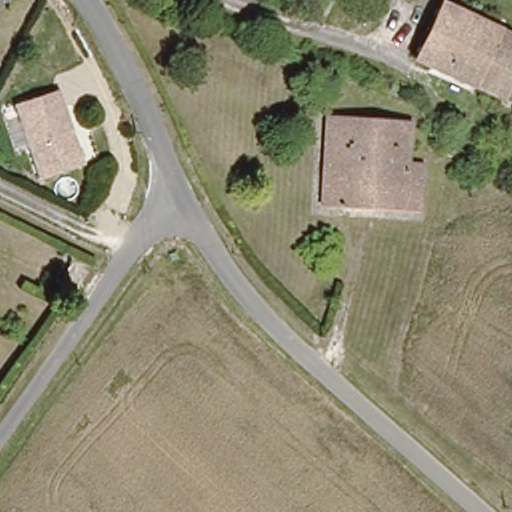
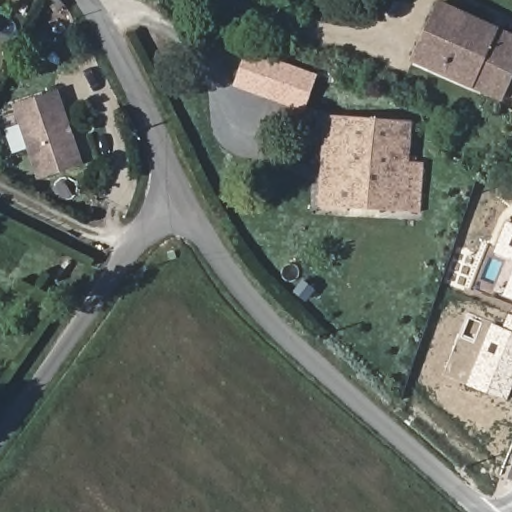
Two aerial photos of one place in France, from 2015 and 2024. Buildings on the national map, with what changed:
unchanged [(512,78),(501,101),(407,57),(436,0),(448,0),(512,35),(512,78)]
new [(246,48),(318,74),(303,111),(233,87),(246,48)]
unchanged [(80,160),(39,176),(12,105),(54,89),(80,160)]
unchanged [(429,225),(414,225),(415,211),(329,205),(321,204),(327,112),(336,113),(411,119),(408,162),(423,163),(420,212),(429,212),(429,225)]
new [(506,221),(512,223),(512,258),(494,251),(506,221)]
new [(512,272),(512,298),(503,295),(512,272)]
new [(492,322),(503,327),(508,313),(512,315),(512,388),(507,400),(467,384),(492,322)]

